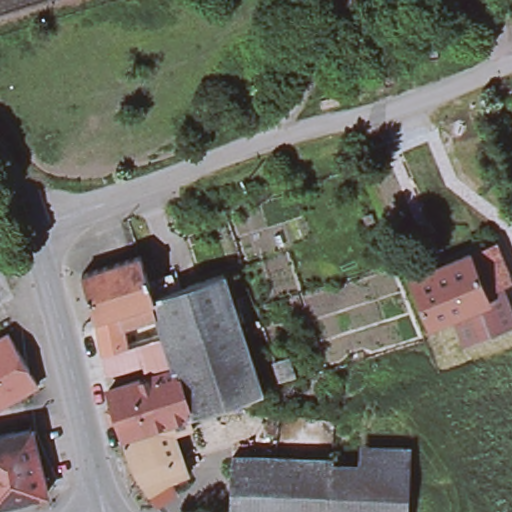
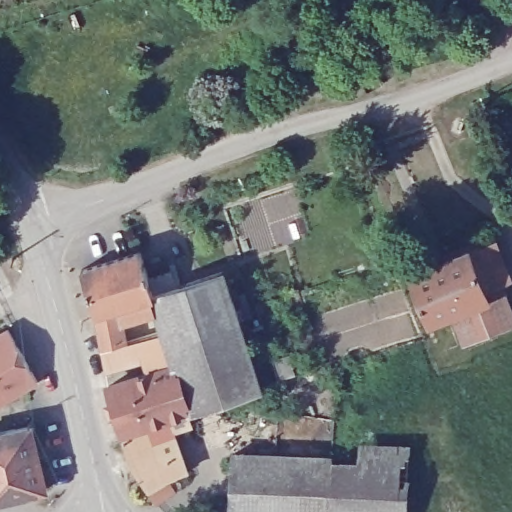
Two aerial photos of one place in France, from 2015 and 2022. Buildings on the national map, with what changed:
unchanged [(495,241),(510,281),(502,283),(485,290),(470,251),(495,241)]
unchanged [(120,432),(122,431),(108,385),(102,349),(97,328),(95,314),(82,268),(114,259),(140,251),(148,277),(170,270),(176,287),(224,271),(239,318),(242,330),(262,389),(233,398),(189,411),(167,418),(187,472),(165,481),(172,493),(157,502),(148,489),(135,471),(129,459),(120,432)]
unchanged [(470,251),(485,290),(488,299),(453,312),(429,322),(410,273),(470,251)]
unchanged [(512,310),(512,324),(463,342),(453,312),(488,299),(485,290),(502,283),(512,310)]
unchanged [(38,379),(0,401),(0,333),(8,328),(38,379)]
unchanged [(47,488),(0,499),(0,431),(32,422),(47,488)]
unchanged [(332,459),(329,512),(228,512),(230,456),(332,459)]
unchanged [(409,463),(407,512),(329,512),(332,459),(409,463)]

